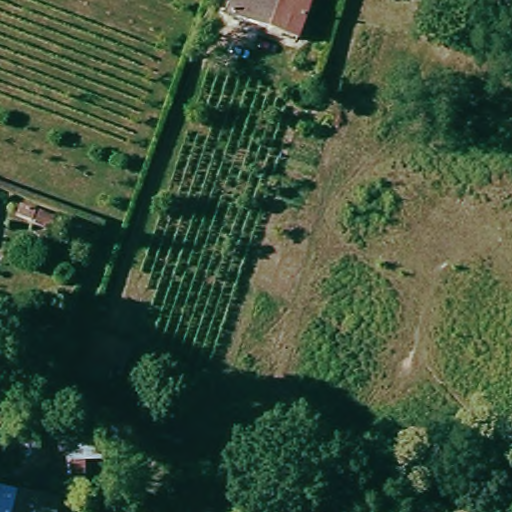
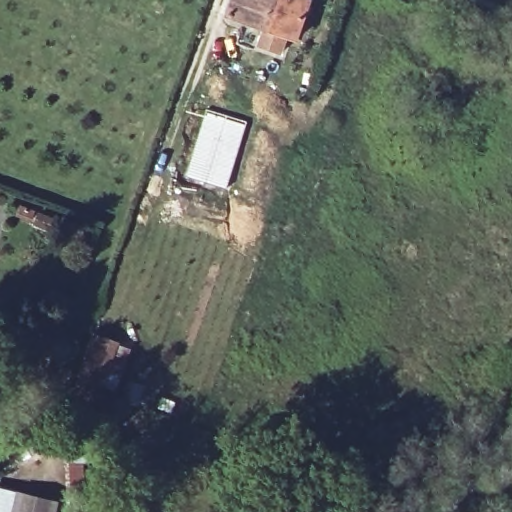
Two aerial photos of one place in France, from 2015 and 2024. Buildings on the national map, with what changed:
unchanged [(301,34),(286,27),(281,40),(225,19),(232,0),(292,0),(312,7),(301,34)]
new [(205,110),(247,121),(226,189),(184,176),(205,110)]
unchanged [(102,340),(124,350),(105,389),(82,380),(102,340)]
unchanged [(69,473),(82,474),(80,509),(66,507),(69,473)]
unchanged [(55,509),(53,512),(10,512),(15,496),(55,509)]

